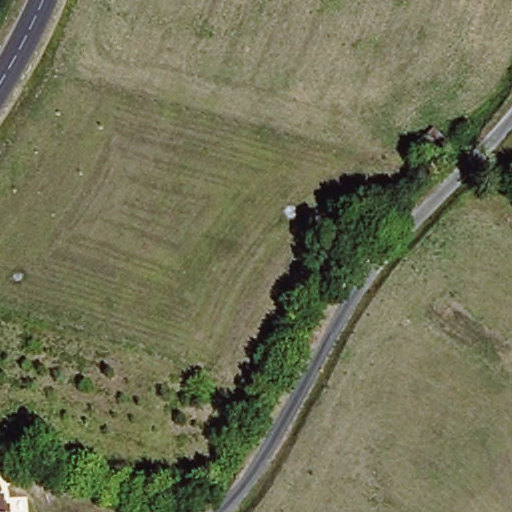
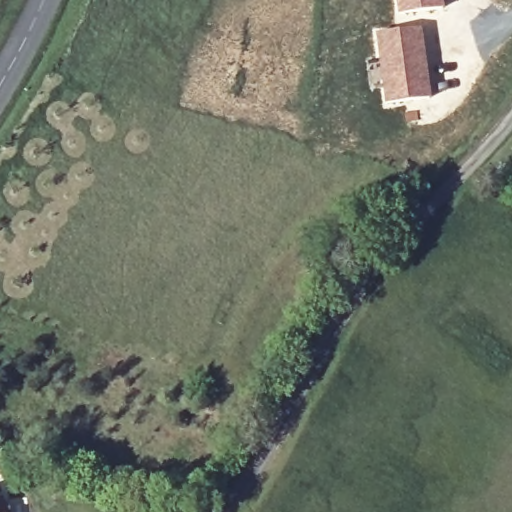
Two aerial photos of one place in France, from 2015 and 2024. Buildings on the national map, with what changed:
new [(396,14),(394,0),(445,0),(445,6),(396,14)]
new [(421,26),(432,96),(383,104),(374,33),(421,26)]
unchanged [(2,495),(7,512),(0,512),(0,495),(2,495)]

